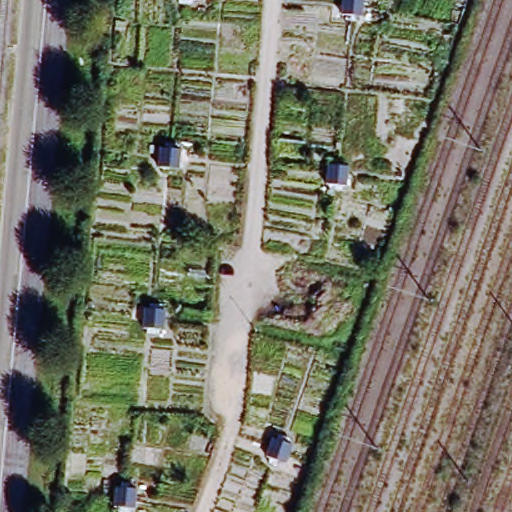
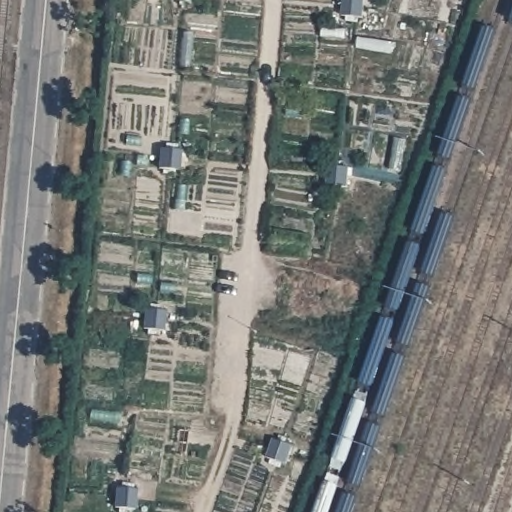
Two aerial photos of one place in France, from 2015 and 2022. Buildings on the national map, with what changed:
unchanged [(193,2),(180,0),(194,0),(193,2)]
unchanged [(360,21),(345,20),(346,0),(364,0),(360,21)]
unchanged [(172,151),(176,139),(188,140),(188,152),(181,154),(179,168),(160,168),(162,146),(172,151)]
unchanged [(350,166),(342,185),(330,183),(336,161),(350,166)]
unchanged [(146,310),(165,313),(165,327),(148,325),(146,310)]
unchanged [(295,441),(286,462),(270,456),(278,436),(295,441)]
unchanged [(143,486),(138,510),(119,507),(127,481),(143,486)]

